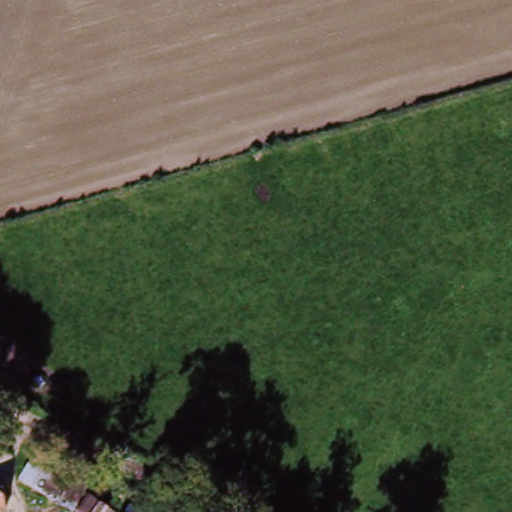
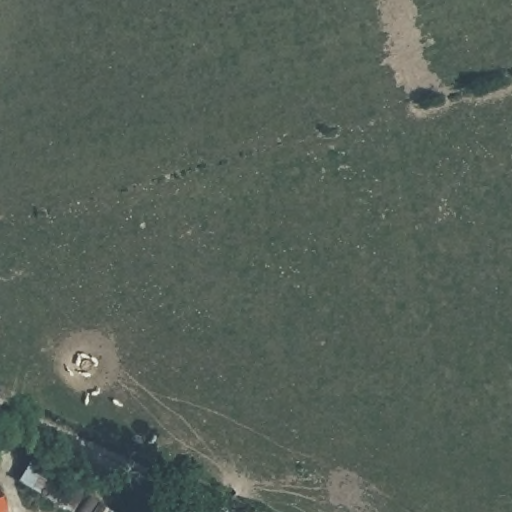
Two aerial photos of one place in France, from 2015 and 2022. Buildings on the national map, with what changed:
unchanged [(27,488),(40,463),(78,481),(65,506),(27,488)]
unchanged [(3,511),(0,512),(0,503),(3,511)]
unchanged [(135,503),(146,512),(127,512),(135,503)]

